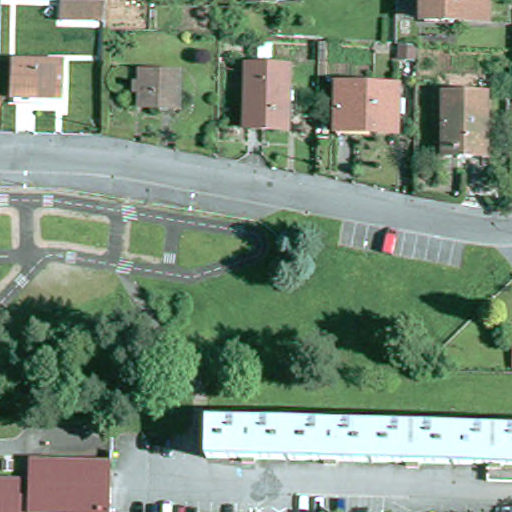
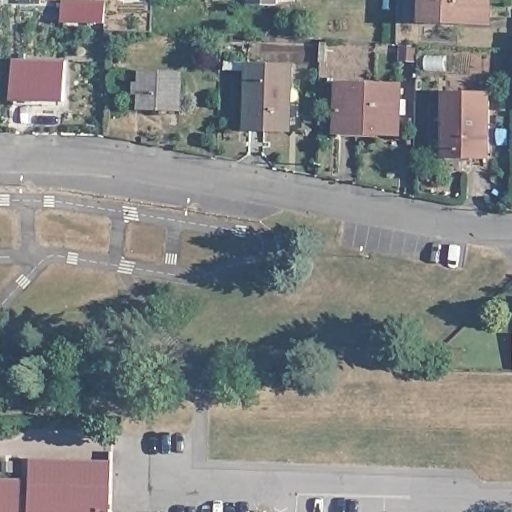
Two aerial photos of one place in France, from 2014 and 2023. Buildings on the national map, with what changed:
unchanged [(285,7),(255,7),(255,0),(285,0),(285,7)]
unchanged [(427,24),(427,0),(490,0),(490,24),(427,24)]
unchanged [(110,26),(99,26),(67,26),(68,2),(99,2),(110,3),(110,26)]
unchanged [(24,62),(70,64),(70,102),(22,101),(24,62)]
unchanged [(295,69),(295,132),(252,132),(253,69),(295,69)]
unchanged [(187,76),(185,110),(149,110),(149,76),(187,76)]
unchanged [(405,89),(405,134),(344,133),(345,88),(405,89)]
unchanged [(452,97),(495,98),(495,160),(451,160),(452,97)]
demolished [(213,422),(512,430),(512,466),(212,457),(213,422)]
unchanged [(30,484),(28,503),(37,504),(39,462),(118,463),(119,454),(122,454),(122,460),(121,472),(119,512),(0,512),(0,483),(30,484)]

